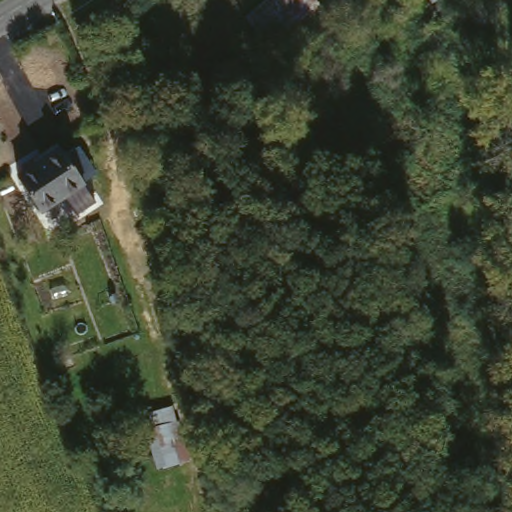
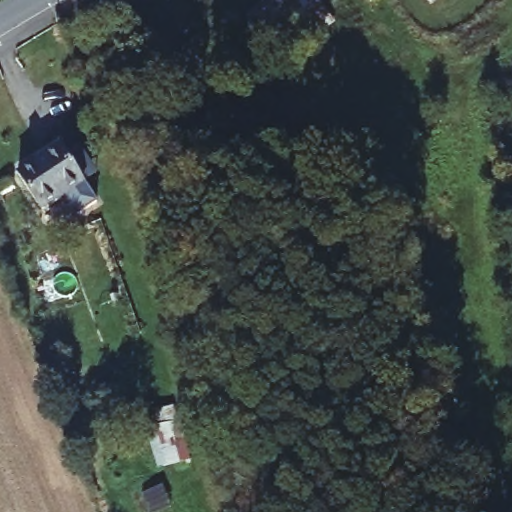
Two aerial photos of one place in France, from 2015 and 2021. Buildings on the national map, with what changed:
unchanged [(325,15),(275,54),(241,7),(251,0),(314,0),(325,15)]
unchanged [(431,6),(426,0),(440,0),(431,6)]
unchanged [(64,138),(81,166),(69,174),(84,198),(65,210),(54,192),(32,206),(9,168),(49,143),(51,146),(64,138)]
unchanged [(172,416),(175,415),(187,453),(156,463),(147,436),(154,434),(145,409),(167,401),(172,416)]

